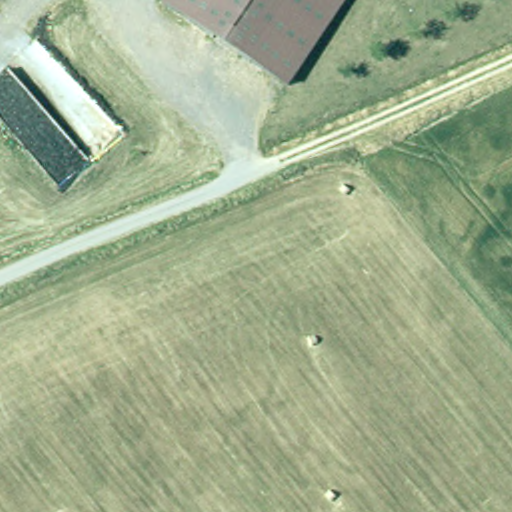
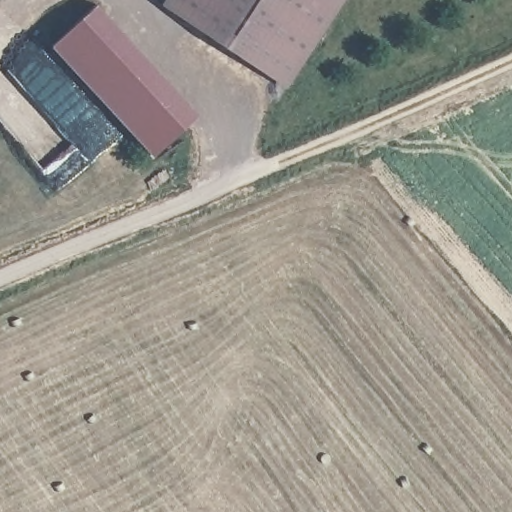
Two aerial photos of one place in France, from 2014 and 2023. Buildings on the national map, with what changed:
unchanged [(288,82),(166,1),(167,0),(344,0),(288,82)]
new [(96,4),(198,115),(154,155),(51,44),(96,4)]

